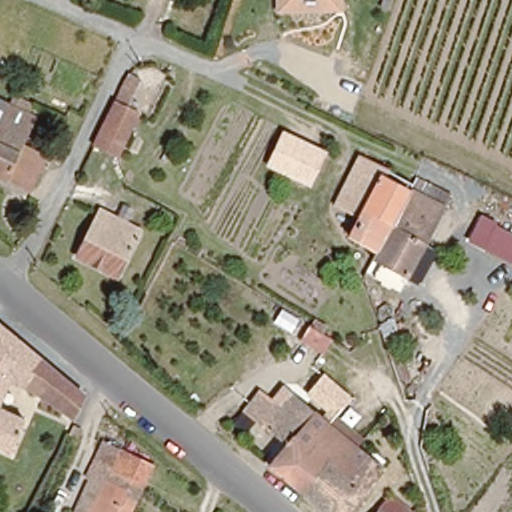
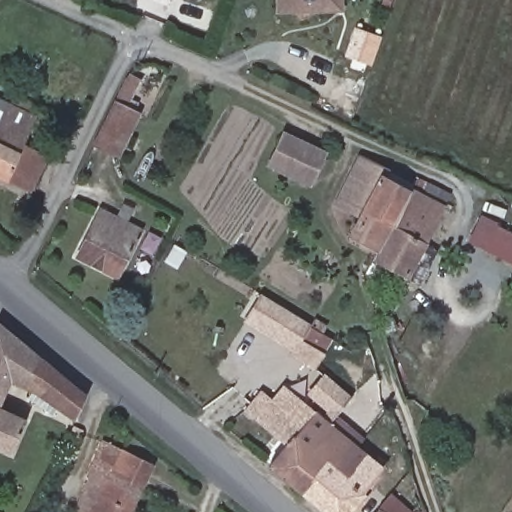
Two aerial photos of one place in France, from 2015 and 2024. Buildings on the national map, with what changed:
unchanged [(281,14),(280,0),(344,0),(345,11),(281,14)]
unchanged [(132,72),(142,77),(129,106),(143,113),(122,156),(99,145),(132,72)]
unchanged [(23,100),(35,106),(29,116),(38,121),(21,153),(44,164),(28,195),(0,180),(0,101),(17,109),(23,100)]
unchanged [(322,154),(309,181),(272,163),(285,136),(322,154)]
unchanged [(371,265),(376,257),(350,243),(362,217),(337,204),(360,156),(385,169),(414,184),(416,181),(419,174),(451,189),(442,207),(403,282),(371,265)]
unchanged [(139,228),(116,274),(78,254),(102,210),(139,228)]
new [(497,222),(495,226),(512,234),(512,263),(467,242),(481,214),(497,222)]
new [(261,294),(311,326),(333,339),(325,353),(315,371),(287,356),(291,351),(244,322),(261,294)]
demolished [(295,326),(290,333),(274,322),(282,308),(305,323),(307,328),(304,333),(295,326)]
unchanged [(6,381),(0,395),(0,324),(85,395),(77,413),(55,404),(6,381)]
unchanged [(277,435),(270,429),(258,420),(246,411),(263,391),(274,400),(286,410),(300,395),(310,383),(344,411),(334,423),(362,446),(373,455),(385,465),(362,495),(348,512),(324,512),(303,495),(270,467),(289,445),(277,435)]
unchanged [(6,408),(23,415),(7,451),(0,447),(0,404),(6,408)]
unchanged [(89,502),(93,494),(104,499),(109,489),(89,478),(96,465),(107,442),(126,451),(155,465),(143,490),(133,512),(97,512),(99,507),(89,502)]
unchanged [(393,499),(410,512),(383,512),(393,499)]
unchanged [(426,505),(429,512),(421,512),(426,505)]

